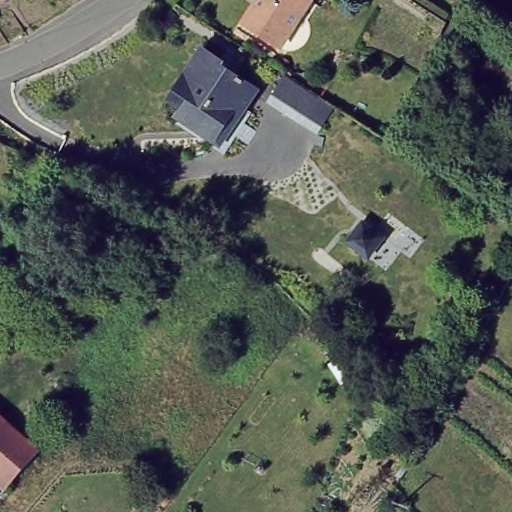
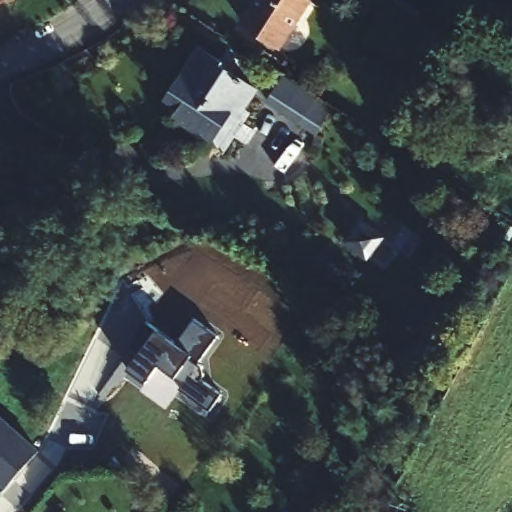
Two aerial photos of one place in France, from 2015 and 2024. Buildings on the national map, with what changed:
unchanged [(307,0),(278,45),(245,23),(259,0),(307,0)]
unchanged [(223,64),(259,89),(246,108),(237,103),(215,134),(179,112),(182,107),(170,98),(203,48),(225,63),(223,64)]
unchanged [(324,99),(308,123),(275,101),(290,78),(324,99)]
unchanged [(363,258),(345,244),(358,226),(377,240),(363,258)]
new [(157,329),(175,342),(193,318),(219,336),(200,363),(203,366),(205,376),(202,379),(223,394),(210,409),(180,387),(185,382),(177,375),(160,363),(147,382),(127,368),(142,349),(132,343),(147,321),(157,329)]
unchanged [(37,452),(39,454),(50,463),(30,484),(22,491),(17,491),(11,492),(4,486),(0,482),(0,418),(20,436),(37,452)]

